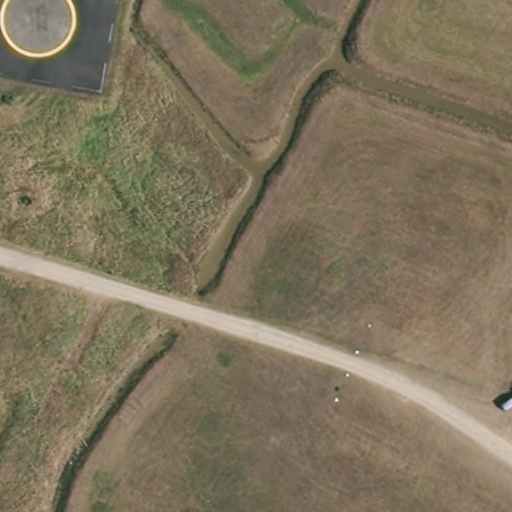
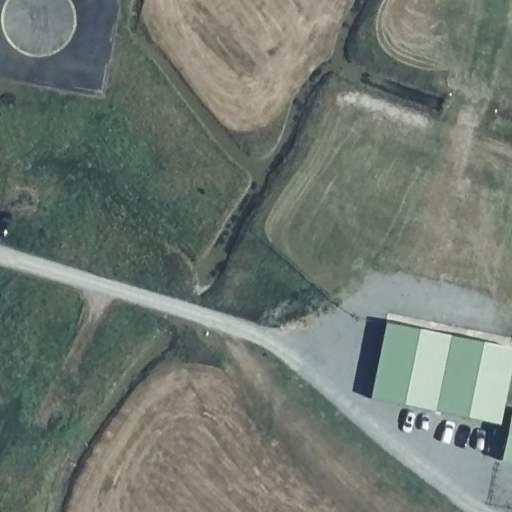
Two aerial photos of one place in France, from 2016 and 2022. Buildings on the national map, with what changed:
new [(498,423),(368,396),(384,322),(512,349),(498,423)]
new [(498,459),(508,410),(512,411),(512,462),(498,459)]

